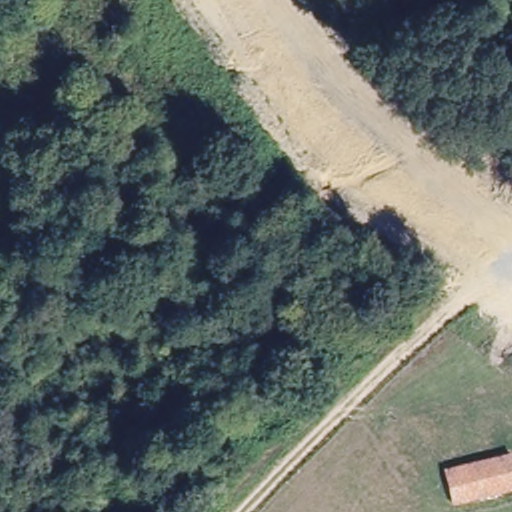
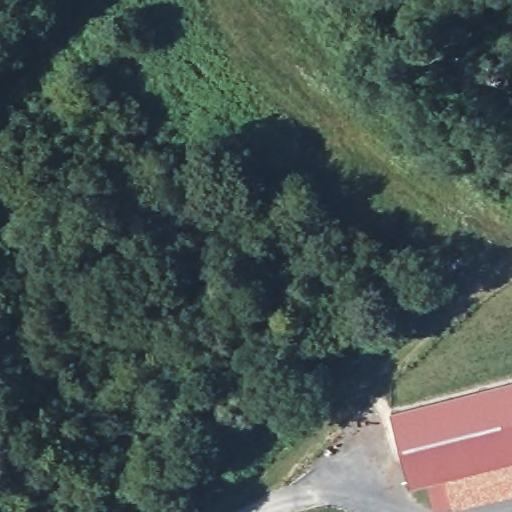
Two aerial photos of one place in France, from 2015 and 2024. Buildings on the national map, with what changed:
new [(436,509),(427,481),(411,484),(391,409),(512,379),(512,494),(455,507),(436,509)]
demolished [(512,471),(512,488),(449,508),(438,474),(507,453),(512,471)]

